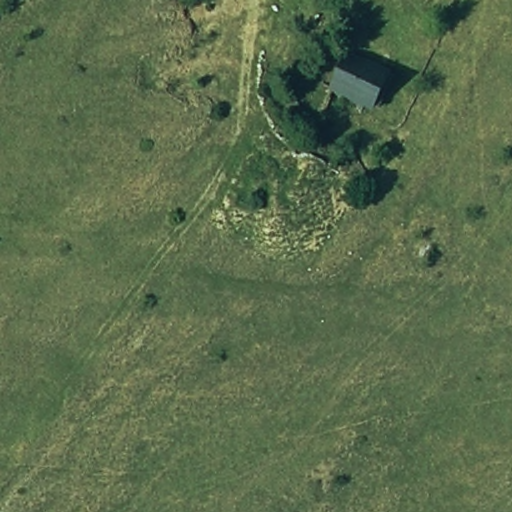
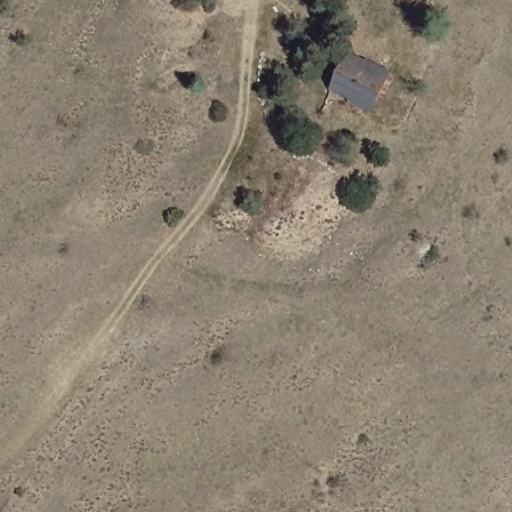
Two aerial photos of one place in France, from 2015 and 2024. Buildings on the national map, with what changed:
unchanged [(337,77),(352,46),(400,68),(386,100),(337,77)]

